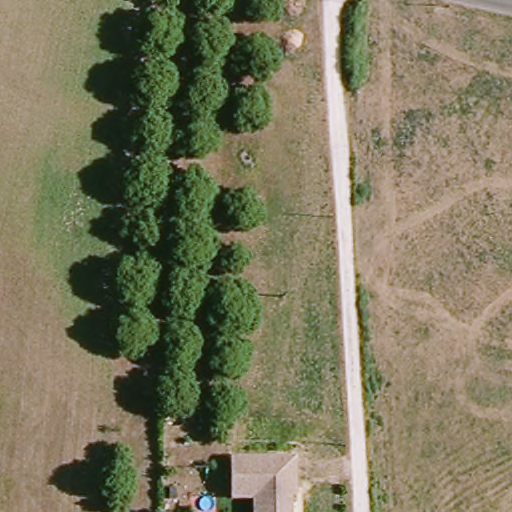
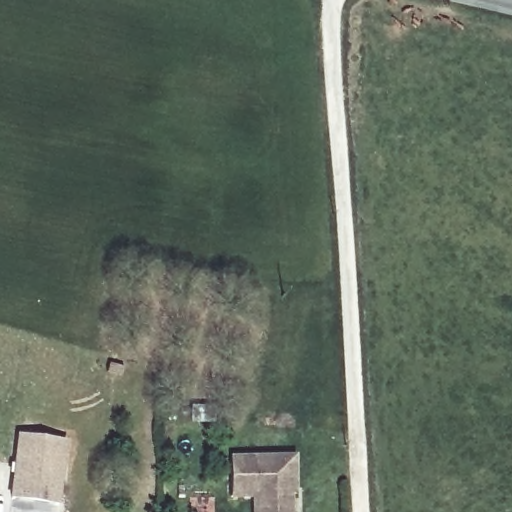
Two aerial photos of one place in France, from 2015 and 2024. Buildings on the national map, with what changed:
new [(22,433),(67,441),(58,505),(12,498),(22,433)]
unchanged [(254,497),(232,497),(231,459),(294,456),(295,487),(296,495),(290,495),(291,512),(254,512),(254,497)]

